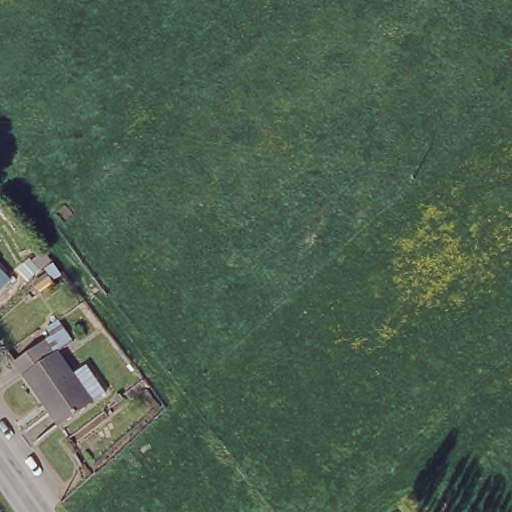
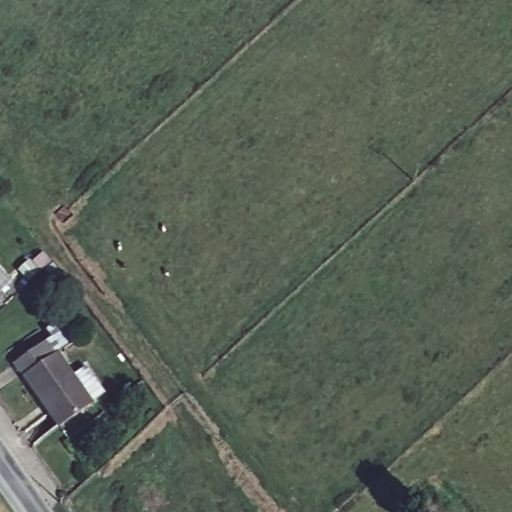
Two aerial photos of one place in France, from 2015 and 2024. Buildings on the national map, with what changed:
unchanged [(0,287),(0,270),(8,280),(0,287)]
unchanged [(50,417),(15,370),(6,360),(37,341),(32,333),(50,323),(63,342),(50,352),(65,372),(81,361),(103,390),(87,401),(55,425),(50,417)]

